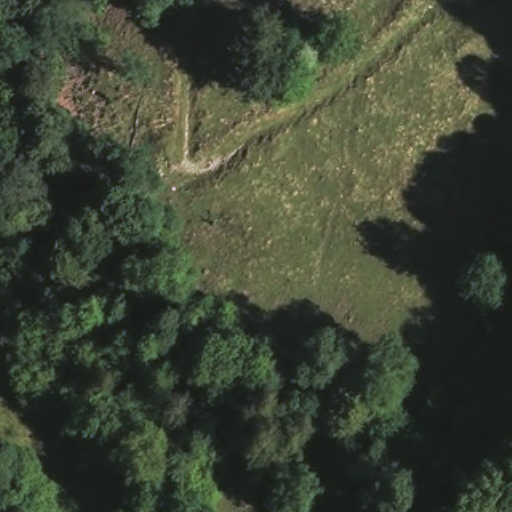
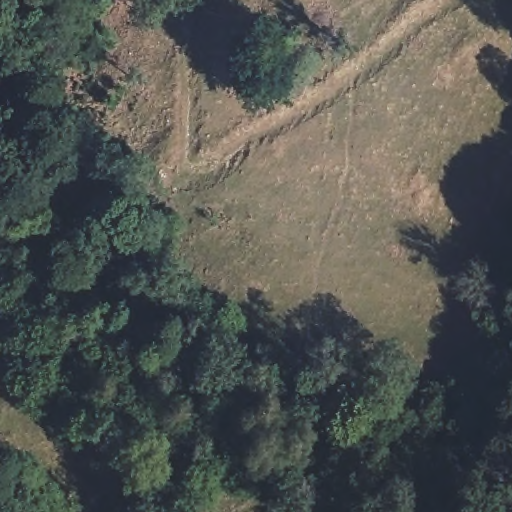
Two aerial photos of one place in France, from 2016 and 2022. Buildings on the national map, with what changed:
[]

